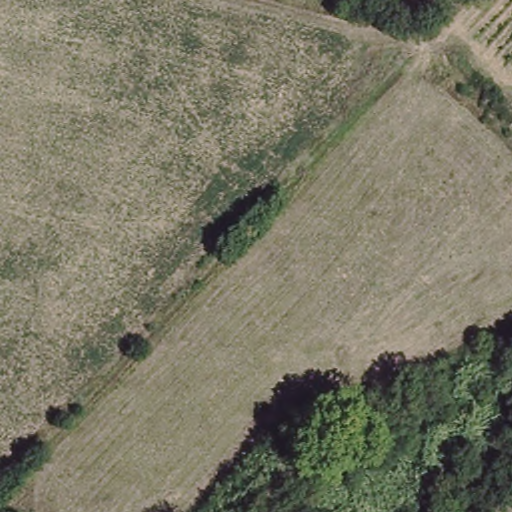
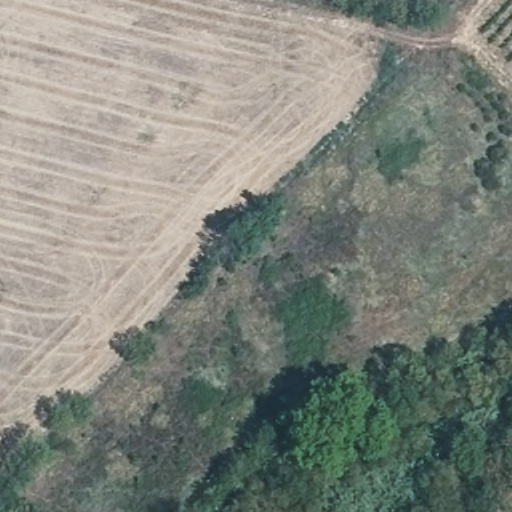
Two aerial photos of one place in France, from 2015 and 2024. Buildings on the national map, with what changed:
unchanged [(340,408),(348,419),(338,426),(328,414),(340,408)]

